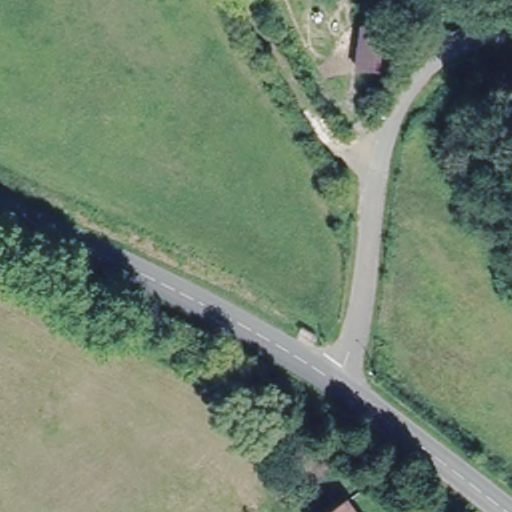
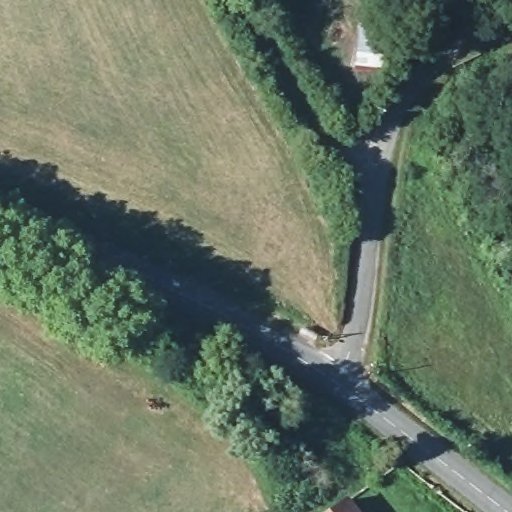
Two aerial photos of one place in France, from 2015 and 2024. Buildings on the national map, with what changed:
unchanged [(354,512),(334,512),(347,503),(354,512)]

